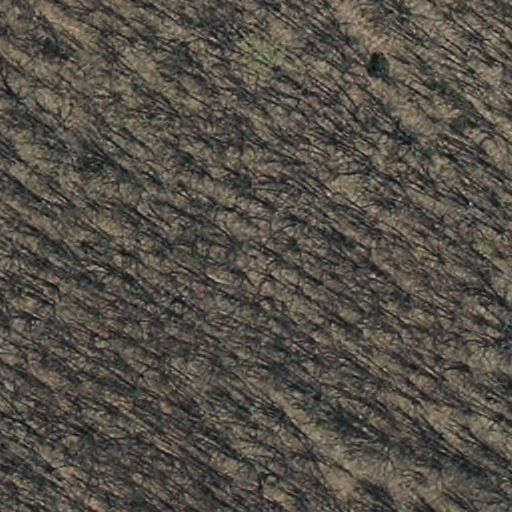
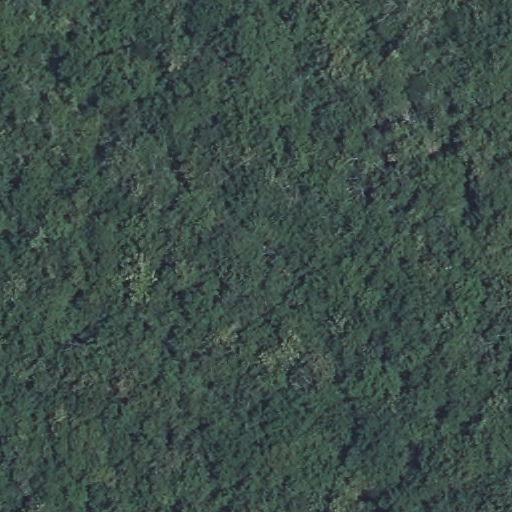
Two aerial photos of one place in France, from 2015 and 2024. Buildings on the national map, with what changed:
[]

